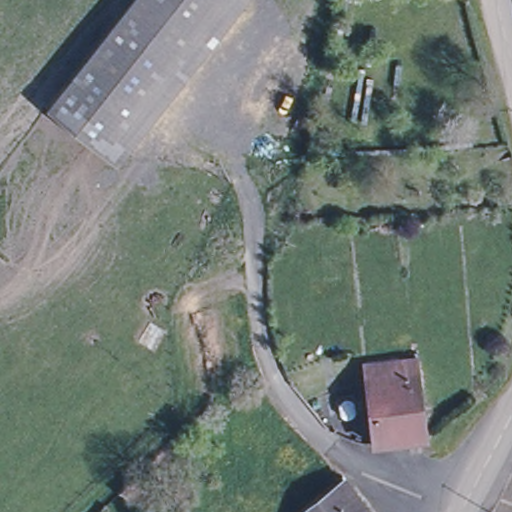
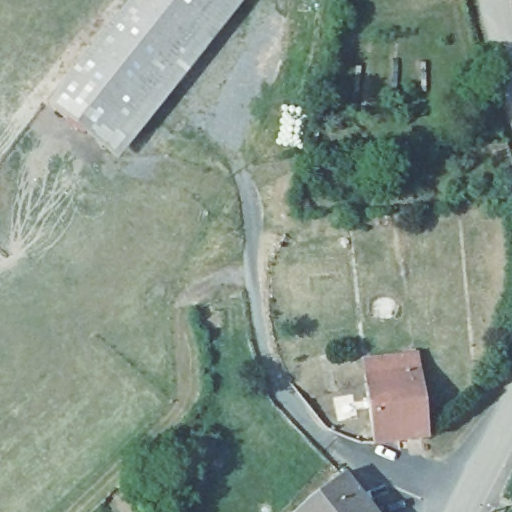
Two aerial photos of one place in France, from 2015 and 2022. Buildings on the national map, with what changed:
unchanged [(53,111),(140,0),(230,0),(107,155),(53,111)]
unchanged [(396,208),(408,208),(410,221),(397,223),(396,208)]
unchanged [(389,369),(388,359),(414,356),(415,366),(423,435),(404,438),(372,443),(362,372),(389,369)]
unchanged [(306,501),(340,475),(352,489),(369,512),(295,512),(305,502),(306,501)]

